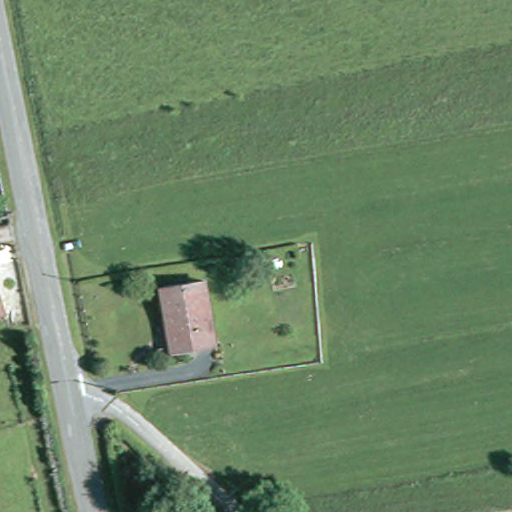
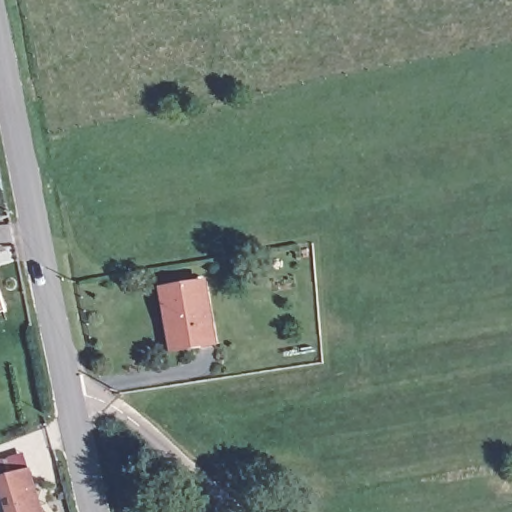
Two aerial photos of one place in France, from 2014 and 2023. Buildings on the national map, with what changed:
unchanged [(215,344),(173,351),(163,289),(205,282),(215,344)]
unchanged [(0,312),(0,295),(5,310),(0,312)]
new [(0,512),(0,477),(30,467),(44,512),(0,512)]

